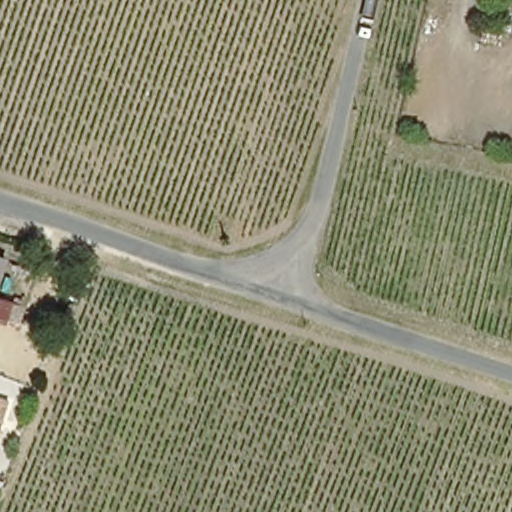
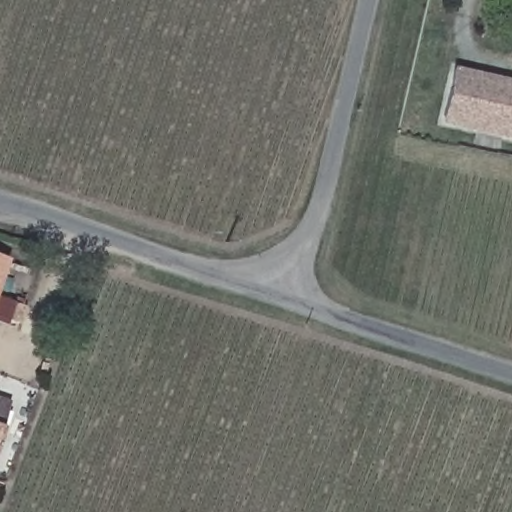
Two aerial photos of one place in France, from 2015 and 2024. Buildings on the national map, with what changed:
demolished [(436,79),(442,52),(461,56),(447,127),(423,123),(406,118),(415,74),(427,77),(432,78),(436,79)]
new [(440,124),(452,65),(512,79),(512,139),(440,124)]
unchanged [(0,267),(0,256),(4,257),(0,267)]
unchanged [(0,434),(0,423),(4,424),(0,434)]

